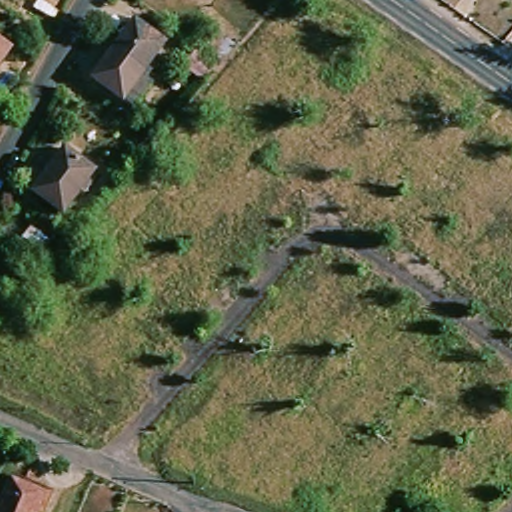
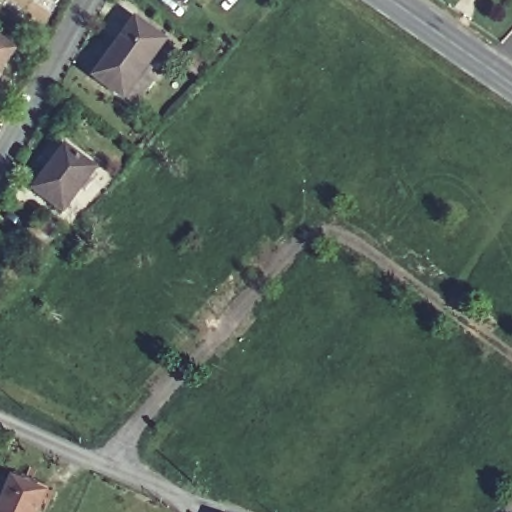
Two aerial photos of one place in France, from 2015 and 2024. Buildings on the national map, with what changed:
unchanged [(102,82),(142,29),(170,50),(130,102),(102,82)]
unchanged [(11,51),(0,67),(0,43),(11,51)]
unchanged [(101,173),(67,214),(36,191),(71,150),(101,173)]
unchanged [(14,482),(47,497),(41,512),(1,512),(14,482)]

